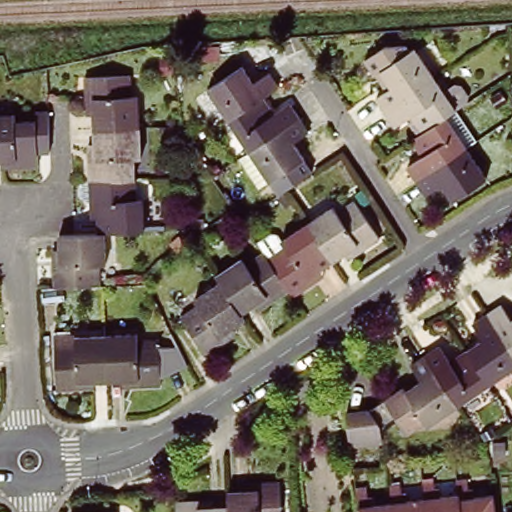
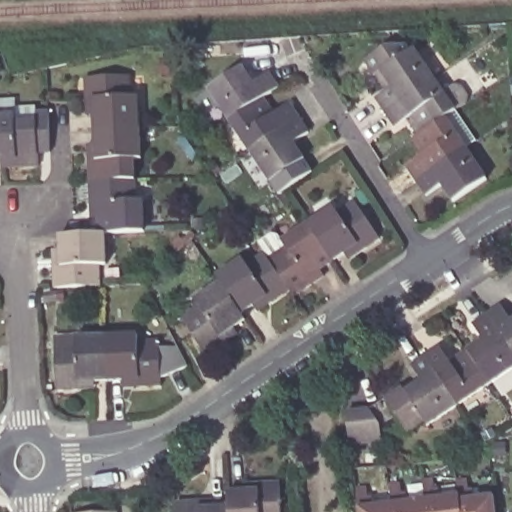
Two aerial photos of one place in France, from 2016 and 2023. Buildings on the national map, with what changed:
unchanged [(374,62),(395,47),(412,46),(416,52),(420,50),(442,81),(395,112),(385,96),(394,91),(382,75),(374,62)]
unchanged [(265,95),(232,117),(212,86),(245,64),(256,81),(270,70),(280,85),(265,95)]
unchanged [(89,104),(88,82),(134,80),(135,101),(140,101),(142,132),(97,134),(97,119),(90,119),(89,104)]
unchanged [(404,126),(395,112),(442,81),(463,112),(454,118),(430,134),(419,116),(404,126)]
unchanged [(265,95),(276,111),(290,101),(300,116),(297,117),(253,147),(232,117),(265,95)]
unchanged [(294,137),(304,154),(262,183),(242,155),(253,147),(297,117),(300,116),(308,128),(294,137)]
unchanged [(1,164),(0,164),(0,118),(14,117),(14,125),(34,125),(37,169),(16,170),(2,171),(1,164)]
unchanged [(426,182),(416,167),(432,156),(421,140),(430,134),(454,118),(475,149),(426,182)]
unchanged [(144,161),(137,162),(138,184),(93,186),(92,164),(91,149),(98,148),(97,134),(142,132),(144,161)]
unchanged [(460,199),(451,185),(435,195),(426,182),(475,149),(494,177),(460,199)]
unchanged [(94,207),(93,186),(138,184),(139,202),(145,202),(147,232),(106,236),(102,236),(102,222),(95,222),(94,207)]
unchanged [(346,245),(332,255),(309,220),(336,202),(340,206),(356,195),(380,232),(363,243),(350,252),(346,245)]
unchanged [(312,277),(293,289),(290,284),(269,252),(285,242),(283,237),(309,220),(332,255),(320,262),(325,268),(312,277)]
unchanged [(75,237),(102,236),(106,236),(108,267),(101,267),(102,288),(57,291),(55,270),(54,255),(62,254),(62,239),(75,237)]
unchanged [(255,300),(242,308),(222,278),(219,273),(245,256),(247,261),(266,248),(269,252),(290,284),(272,296),(258,306),(255,300)]
unchanged [(225,336),(205,348),(180,313),(199,302),(195,296),(222,278),(242,308),(245,314),(232,322),(237,328),(225,336)]
unchanged [(502,307),(512,321),(512,353),(487,317),(502,307)]
unchanged [(512,369),(490,384),(467,351),(482,340),(473,327),(487,317),(512,353),(512,369)]
unchanged [(108,374),(107,329),(138,328),(139,335),(160,333),(162,379),(142,380),(126,382),(125,373),(108,374)]
unchanged [(80,383),(57,385),(55,338),(75,338),(76,330),(107,329),(108,374),(95,375),(95,382),(80,383)]
unchanged [(490,384),(459,405),(427,357),(442,348),(452,362),(467,351),(490,384)]
unchanged [(404,423),(399,417),(389,402),(407,390),(408,392),(422,381),(414,367),(427,357),(459,405),(430,425),(429,422),(410,434),(404,423)]
unchanged [(349,407),(382,406),(387,437),(351,443),(349,407)]
unchanged [(435,481),(437,491),(442,490),(444,498),(464,496),(466,512),(430,512),(429,500),(427,482),(435,481)]
unchanged [(462,483),(472,482),(474,493),(478,492),(480,502),(487,501),(496,500),(498,512),(466,512),(464,496),(462,483)]
unchanged [(402,484),(403,495),(408,494),(409,502),(429,500),(430,512),(395,512),(394,504),(392,485),(402,484)]
unchanged [(229,512),(228,498),(245,497),(245,490),(260,489),(281,487),(281,512),(229,512)]
unchanged [(368,487),(369,498),(374,497),(375,506),(394,504),(395,512),(360,512),(357,488),(368,487)]

